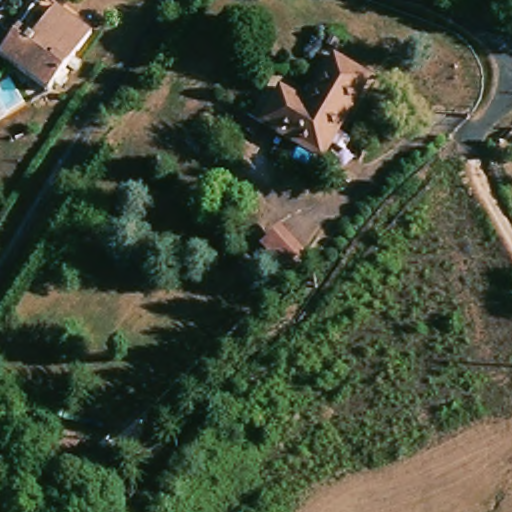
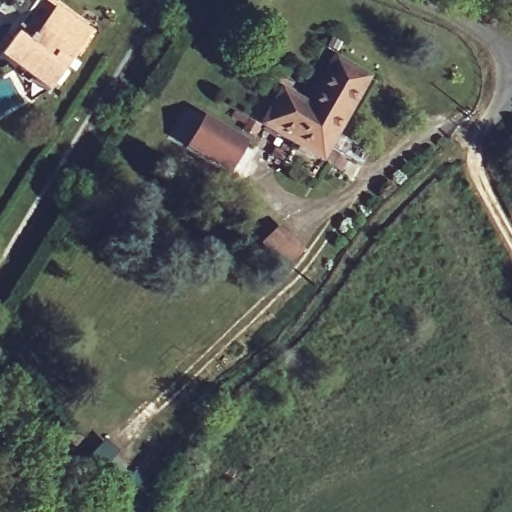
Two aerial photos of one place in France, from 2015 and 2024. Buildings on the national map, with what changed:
unchanged [(54,8),(86,28),(48,90),(0,59),(16,34),(32,44),(54,8)]
unchanged [(364,82),(320,162),(256,126),(276,88),(306,104),(329,62),(364,82)]
new [(219,169),(186,150),(201,121),(210,118),(248,141),(232,169),(219,169)]

